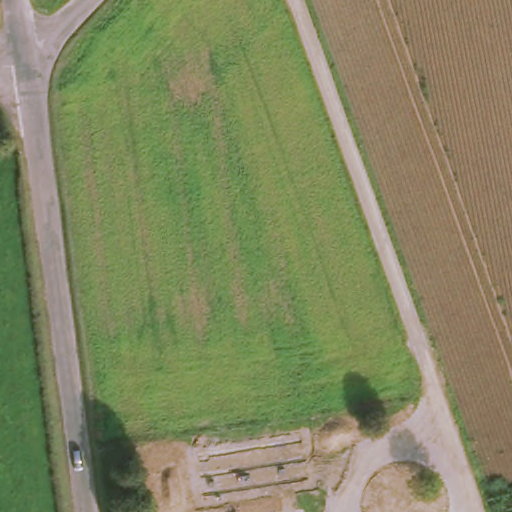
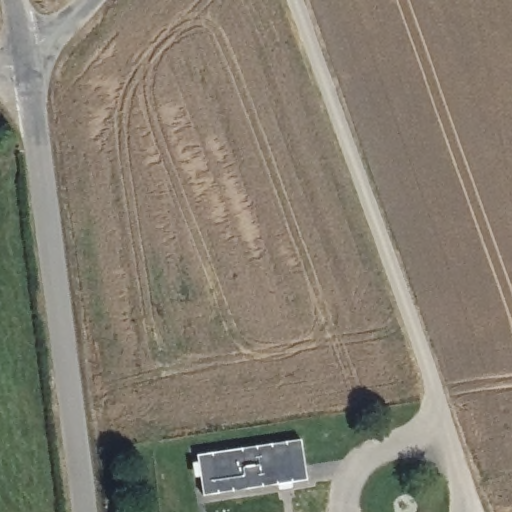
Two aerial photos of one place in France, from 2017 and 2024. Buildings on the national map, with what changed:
new [(301,442),(306,482),(203,496),(197,456),(301,442)]

